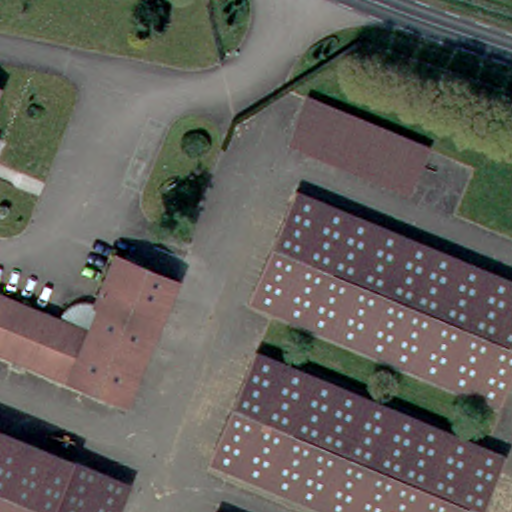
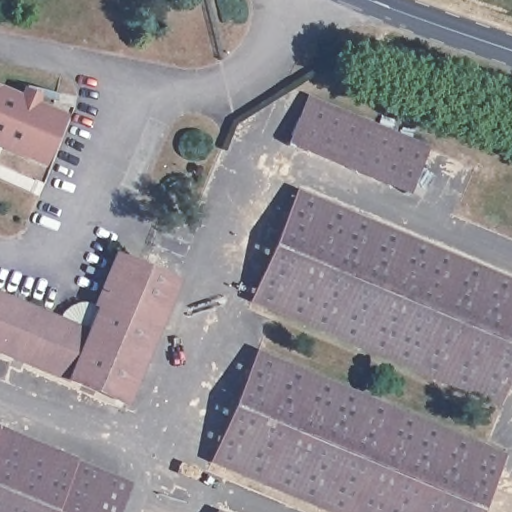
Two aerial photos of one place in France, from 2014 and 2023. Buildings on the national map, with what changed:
new [(21,88),(42,96),(39,102),(65,114),(44,167),(0,147),(0,85),(19,94),(21,88)]
unchanged [(416,145),(419,149),(403,187),(283,138),(299,100),(416,145)]
unchanged [(512,278),(512,359),(495,401),(245,300),(291,188),(512,278)]
unchanged [(67,301),(85,300),(103,251),(167,277),(118,400),(109,396),(0,352),(0,298),(49,317),(53,311),(67,301)]
unchanged [(453,431),(504,452),(479,512),(335,512),(205,460),(250,352),(354,392),(453,431)]
unchanged [(0,512),(0,430),(19,437),(66,457),(44,512),(0,512)]
unchanged [(123,481),(110,512),(44,512),(66,457),(96,470),(123,481)]

